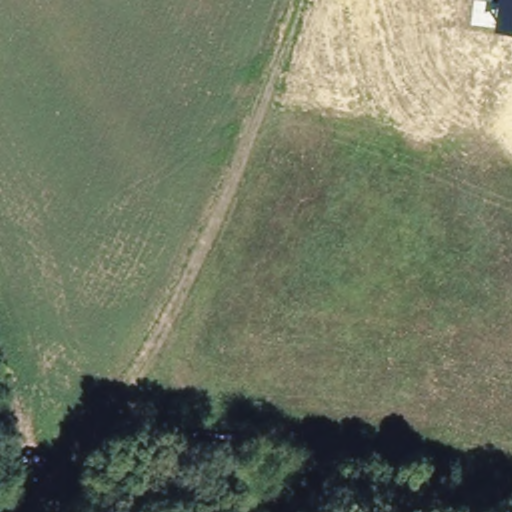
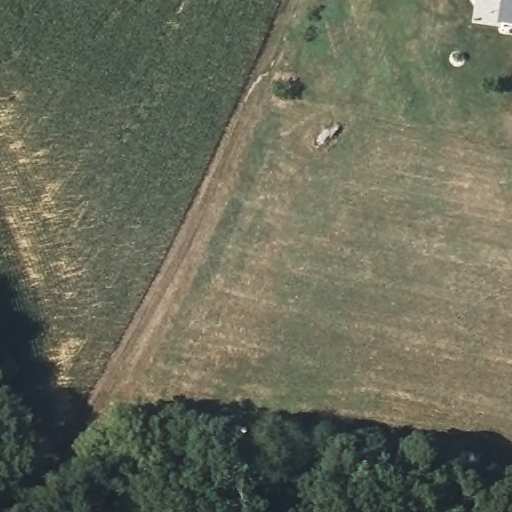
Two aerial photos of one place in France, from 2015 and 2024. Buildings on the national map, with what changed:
unchanged [(502,26),(504,11),(506,0),(512,0),(512,27),(502,26)]

